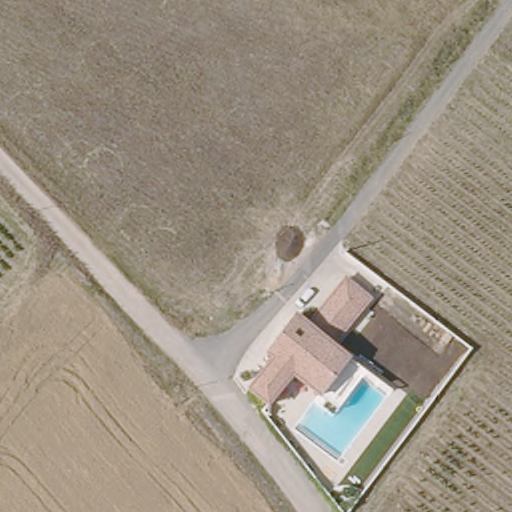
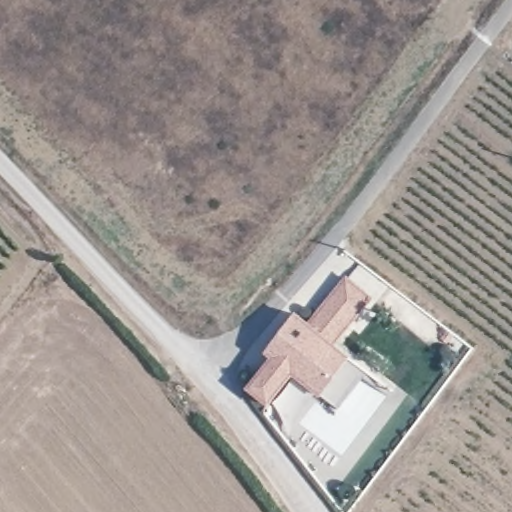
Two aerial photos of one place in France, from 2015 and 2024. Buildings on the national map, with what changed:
unchanged [(309,321),(341,278),(373,299),(334,341),(309,321)]
unchanged [(335,406),(296,374),(277,397),(251,376),(301,314),(309,321),(334,341),(366,367),(335,406)]

